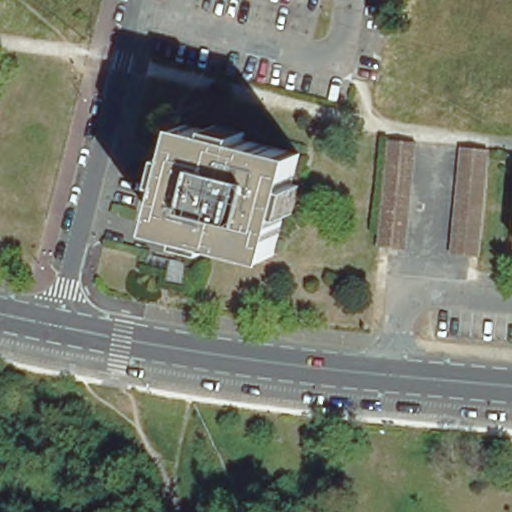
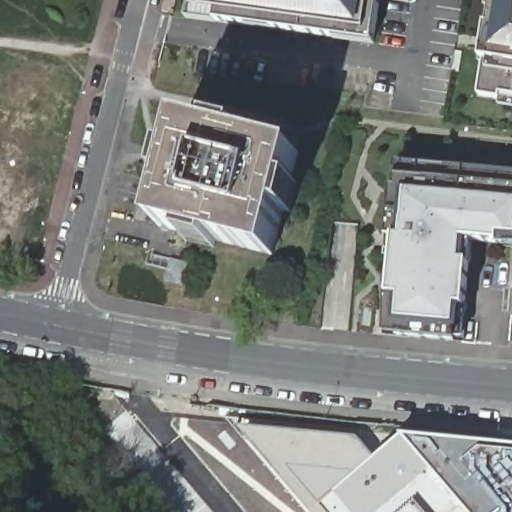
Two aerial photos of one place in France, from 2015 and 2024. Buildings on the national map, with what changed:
new [(249,27),(237,25),(217,22),(217,26),(188,21),(194,0),(196,0),(198,0),(383,0),(377,38),(375,47),(335,40),(249,27)]
new [(496,0),(512,0),(512,100),(482,95),(496,0)]
unchanged [(188,235),(159,227),(171,183),(159,180),(166,152),(178,155),(186,125),(215,133),(217,126),(243,133),(242,140),(296,154),(288,184),(300,187),(293,215),(281,212),(269,256),(214,242),(212,250),(186,243),(188,235)]
demolished [(413,141),(403,250),(376,248),(386,139),(413,141)]
demolished [(488,149),(478,257),(451,254),(461,146),(488,149)]
new [(396,236),(390,235),(393,185),(398,185),(398,176),(400,164),(512,174),(512,246),(502,243),(464,240),(462,262),(469,262),(467,307),(459,307),(459,328),(457,340),(386,334),(390,295),(396,236)]
unchanged [(182,286),(165,281),(171,261),(187,265),(182,286)]
new [(238,425),(358,436),(374,456),(402,435),(512,445),(512,512),(312,512),(238,425)]

